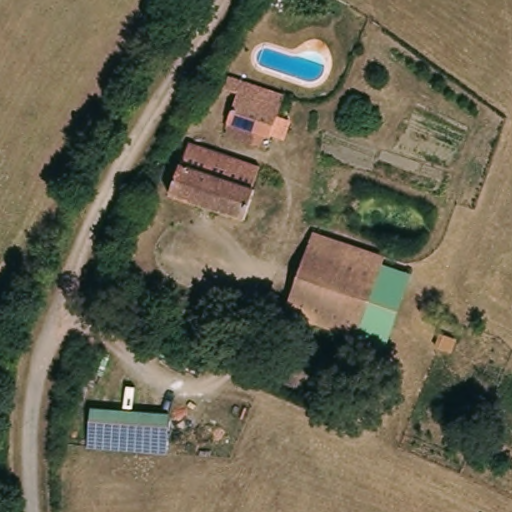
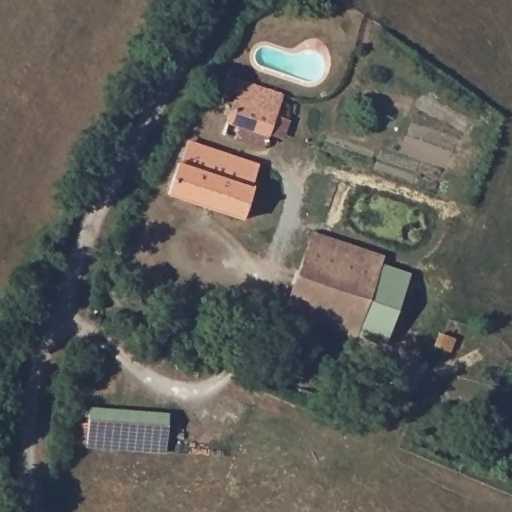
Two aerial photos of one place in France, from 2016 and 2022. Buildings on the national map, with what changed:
unchanged [(260,153),(217,137),(233,96),(219,91),(226,78),(280,99),(260,153)]
unchanged [(242,224),(169,195),(189,144),(260,173),(242,224)]
unchanged [(361,324),(357,338),(285,311),(312,231),(385,258),(378,278),(361,324)]
unchanged [(406,288),(387,333),(361,324),(378,278),(406,288)]
unchanged [(85,450),(89,409),(170,415),(166,454),(85,450)]

